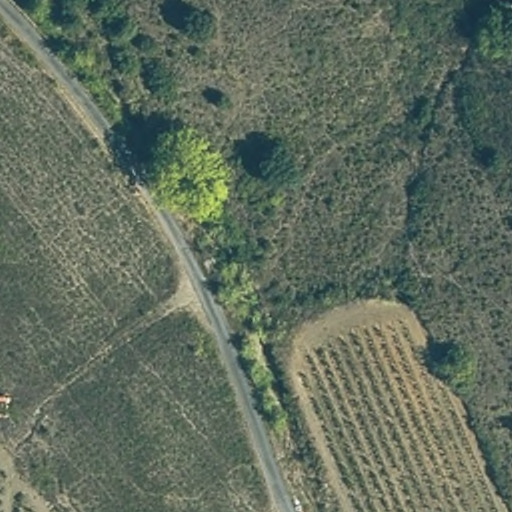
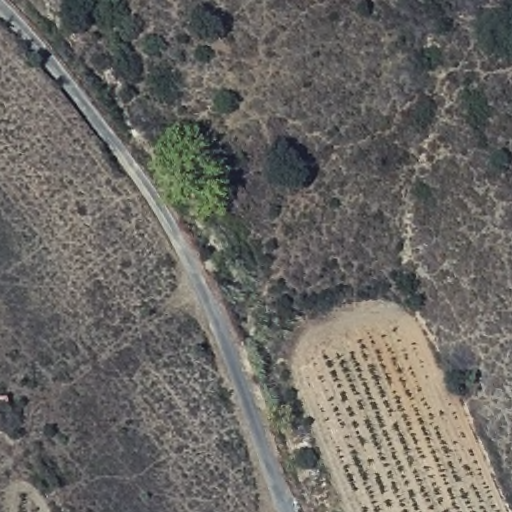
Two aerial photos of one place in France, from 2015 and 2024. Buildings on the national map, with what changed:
unchanged [(11,396),(10,417),(0,419),(0,397),(11,396)]

